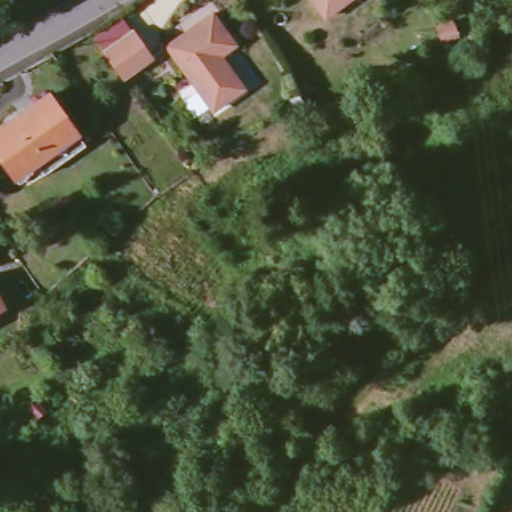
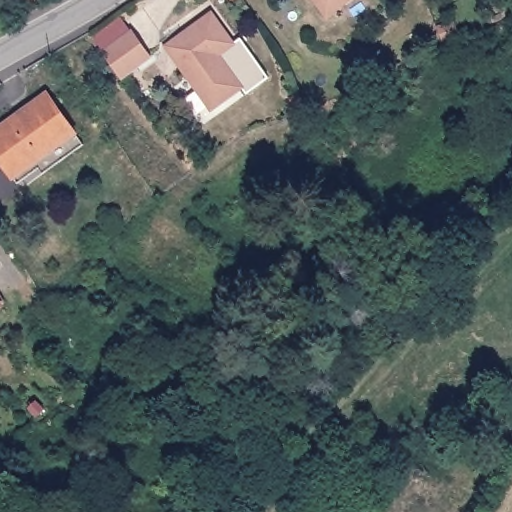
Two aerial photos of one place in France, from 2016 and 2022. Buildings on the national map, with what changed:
unchanged [(320,0),(345,0),(329,12),(320,0)]
unchanged [(213,8),(234,39),(218,50),(217,55),(221,59),(227,61),(241,83),(209,104),(166,38),(213,8)]
unchanged [(135,49),(105,68),(87,40),(117,21),(135,49)]
unchanged [(0,117),(39,88),(65,125),(2,168),(0,165),(0,117)]
unchanged [(65,125),(74,138),(12,182),(2,168),(65,125)]
unchanged [(0,305),(0,298),(4,303),(0,305)]

